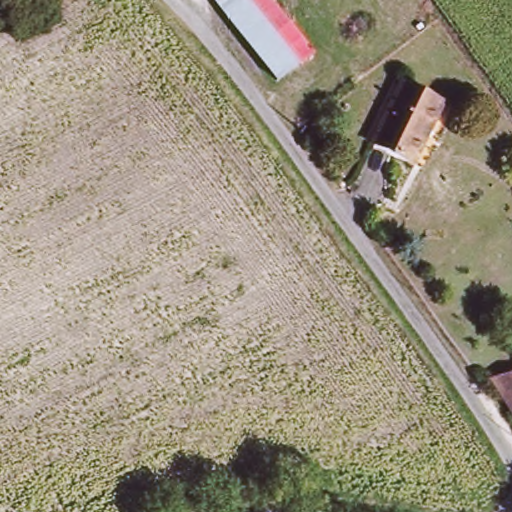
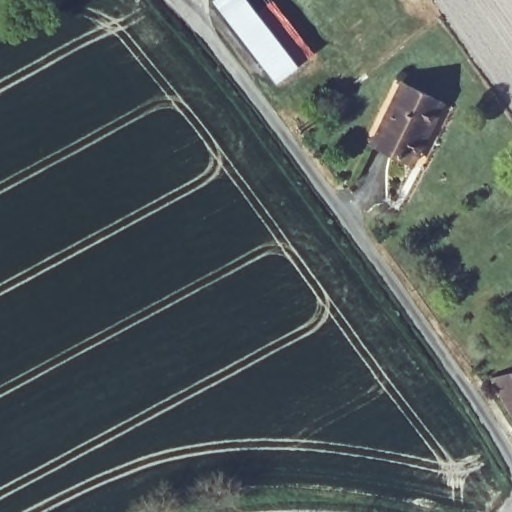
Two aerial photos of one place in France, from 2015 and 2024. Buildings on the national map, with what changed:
unchanged [(276,87),(219,11),(235,0),(246,0),(299,70),(276,87)]
unchanged [(312,60),(299,70),(246,0),(267,0),(312,60)]
unchanged [(441,104),(411,166),(372,147),(403,85),(441,104)]
unchanged [(512,421),(491,390),(512,383),(512,421)]

